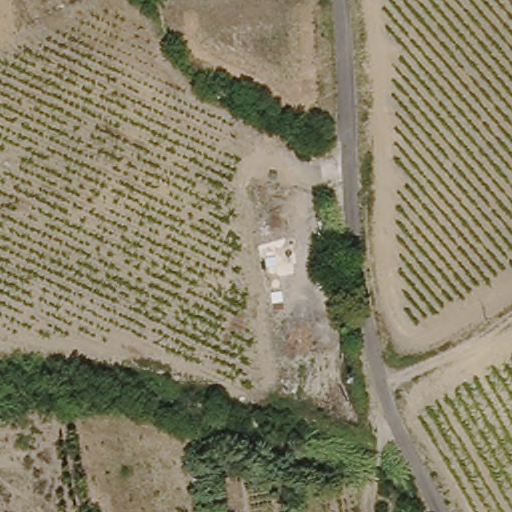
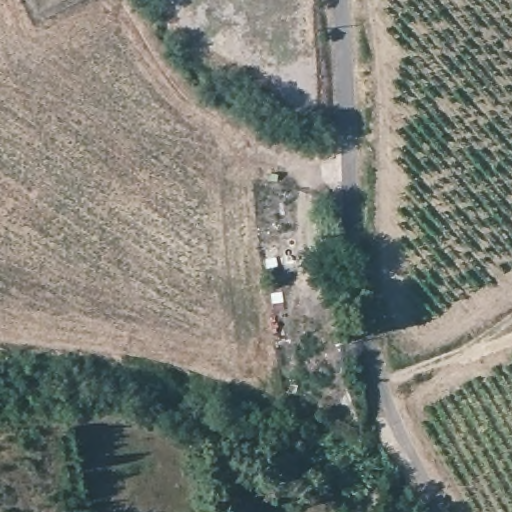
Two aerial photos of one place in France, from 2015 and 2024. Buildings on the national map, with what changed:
unchanged [(233,470),(209,474),(203,457),(228,452),(233,470)]

